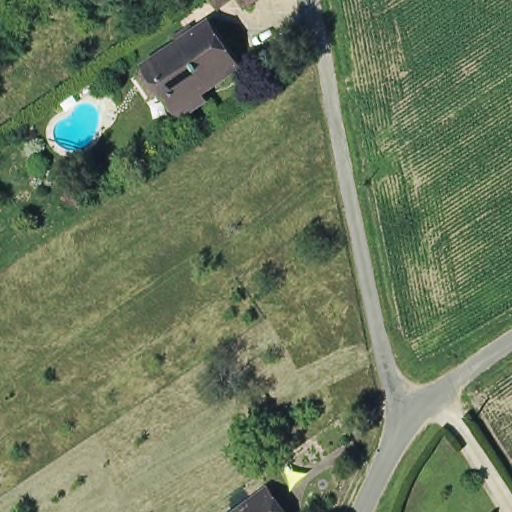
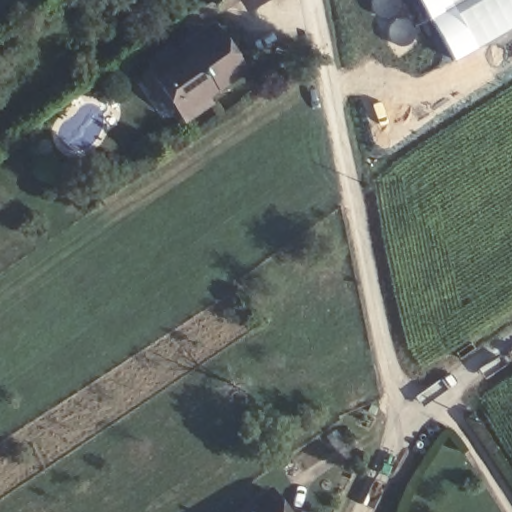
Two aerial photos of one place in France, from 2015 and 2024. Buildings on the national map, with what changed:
unchanged [(217,6),(213,0),(226,0),(217,6)]
unchanged [(243,2),(242,0),(246,0),(243,2)]
new [(452,59),(418,0),(512,0),(512,25),(452,59)]
unchanged [(175,107),(159,85),(151,90),(136,70),(144,65),(210,17),(240,60),(202,87),(207,94),(180,113),(175,107)]
unchanged [(286,512),(244,512),(272,493),(286,512)]

